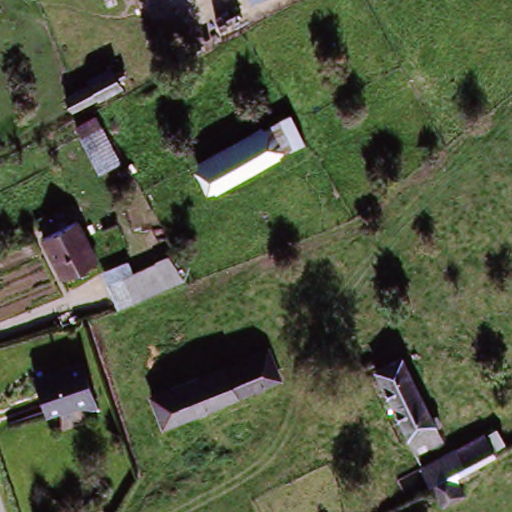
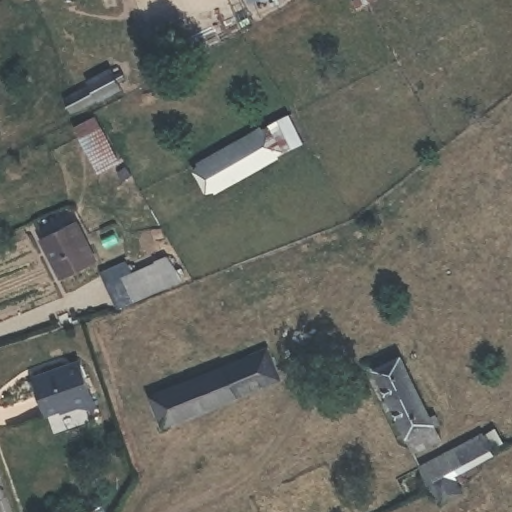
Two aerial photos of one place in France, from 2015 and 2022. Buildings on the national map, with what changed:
unchanged [(112,70),(125,92),(75,117),(64,95),(112,70)]
unchanged [(280,97),(293,114),(310,141),(210,195),(192,162),(220,146),(215,131),(280,97)]
unchanged [(123,161),(100,172),(75,126),(98,115),(123,161)]
unchanged [(61,273),(43,232),(80,216),(97,257),(61,273)]
unchanged [(187,281),(146,298),(117,308),(102,266),(132,255),(135,266),(175,250),(187,281)]
unchanged [(173,429),(162,402),(188,391),(184,380),(212,369),(215,379),(250,365),(246,353),(262,348),(278,383),(173,429)]
unchanged [(407,353),(445,436),(410,455),(370,368),(407,353)]
unchanged [(98,395),(53,413),(38,377),(83,359),(98,395)]
unchanged [(432,490),(423,470),(487,438),(495,454),(458,472),(465,490),(439,504),(432,490)]

